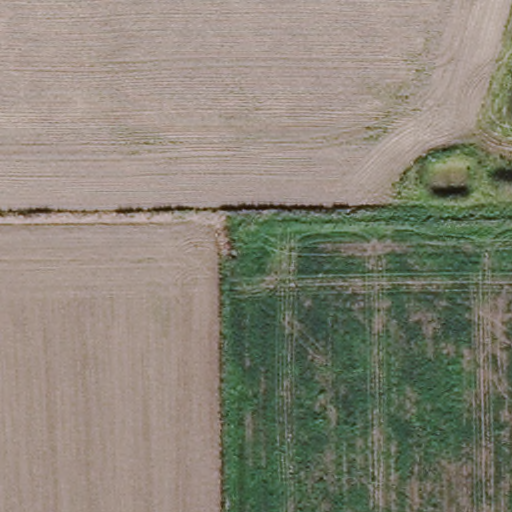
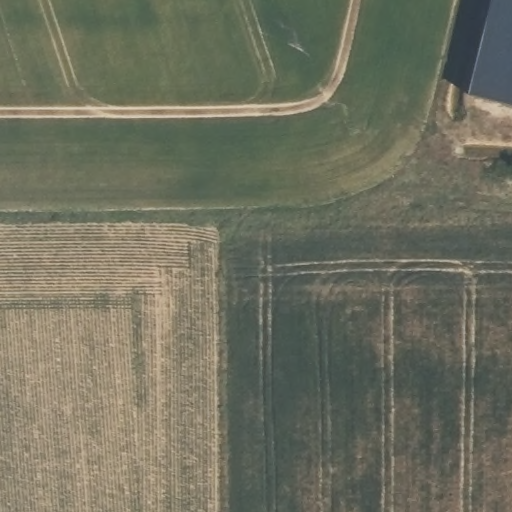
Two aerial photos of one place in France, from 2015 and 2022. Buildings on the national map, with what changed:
new [(464,92),(487,0),(512,0),(512,105),(464,92)]

